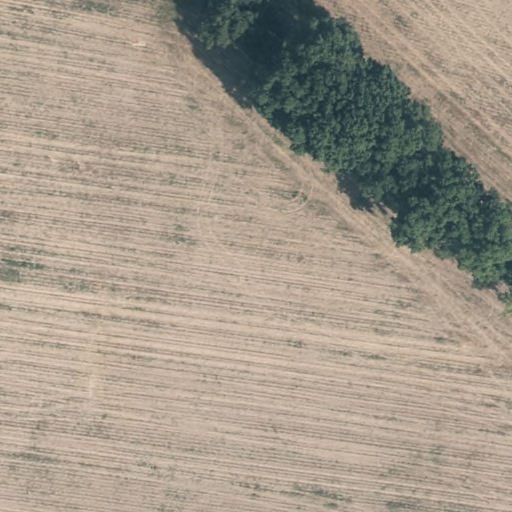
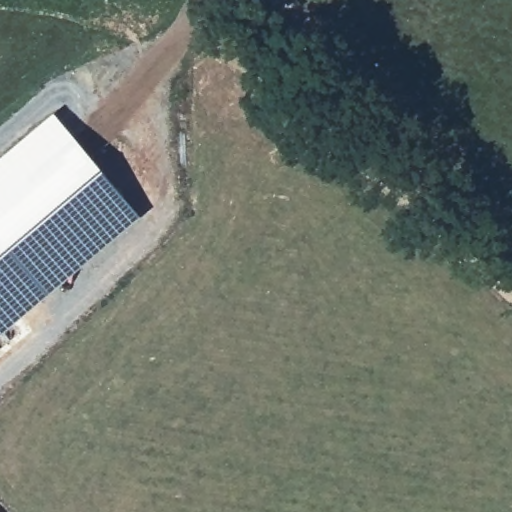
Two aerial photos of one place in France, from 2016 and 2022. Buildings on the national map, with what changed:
new [(141,217),(0,335),(0,158),(54,112),(141,217)]

